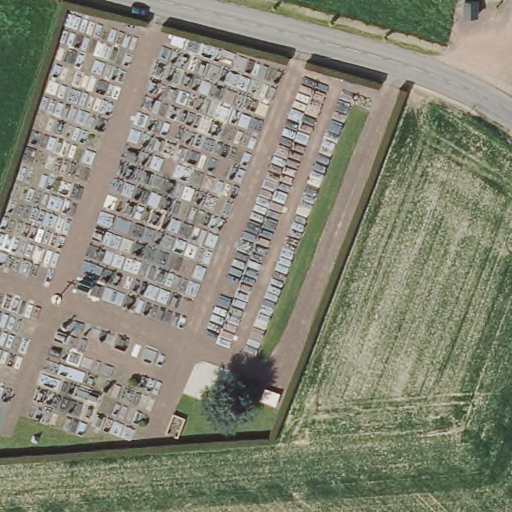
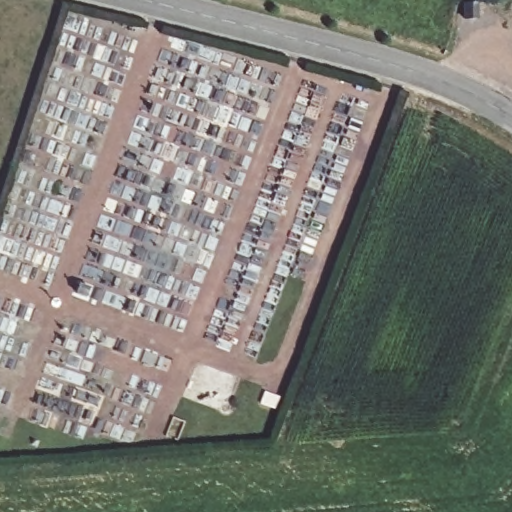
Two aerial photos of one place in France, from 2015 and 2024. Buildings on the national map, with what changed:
unchanged [(485,7),(487,23),(475,25),(472,10),(485,7)]

